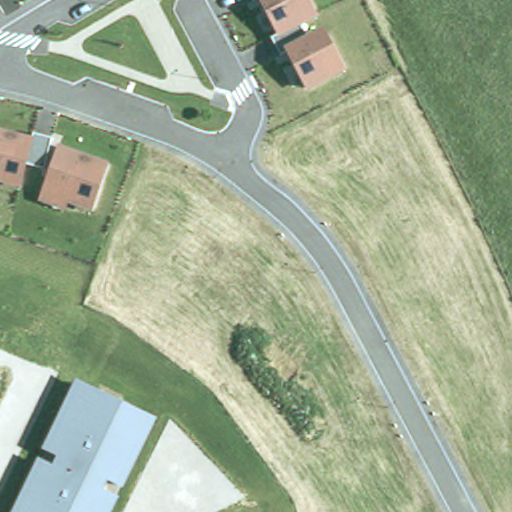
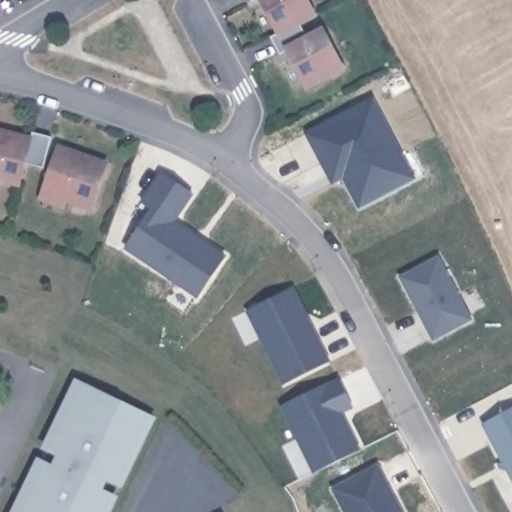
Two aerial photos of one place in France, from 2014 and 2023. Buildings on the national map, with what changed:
unchanged [(251,0),(257,0),(253,2),(251,0)]
unchanged [(299,25),(306,34),(324,27),(346,69),(306,88),(289,55),(282,58),(273,37),(277,37),(260,0),(309,0),(318,18),(299,25)]
new [(332,182),(322,163),(306,133),(372,99),(402,155),(414,177),(402,183),(359,206),(333,157),(343,176),(332,182)]
unchanged [(33,133),(50,137),(44,168),(26,164),(22,189),(0,183),(0,129),(32,137),(33,133)]
unchanged [(109,161),(92,210),(68,203),(66,210),(38,201),(58,144),(109,161)]
new [(224,256),(197,297),(125,249),(151,209),(141,202),(161,173),(191,194),(173,221),(194,236),(203,242),(224,256)]
new [(474,319),(435,339),(400,275),(439,254),(474,319)]
new [(286,288),(306,325),(309,323),(328,361),(284,382),(261,336),(247,343),(234,316),(286,288)]
new [(338,378),(351,405),(339,410),(359,448),(299,478),(281,444),(298,435),(282,405),(338,378)]
unchanged [(39,458),(53,465),(57,456),(44,449),(76,380),(157,418),(123,488),(108,480),(104,490),(119,497),(112,512),(13,512),(39,458)]
new [(481,423),(512,407),(512,482),(481,423)]
new [(404,512),(343,512),(331,488),(379,463),(404,512)]

